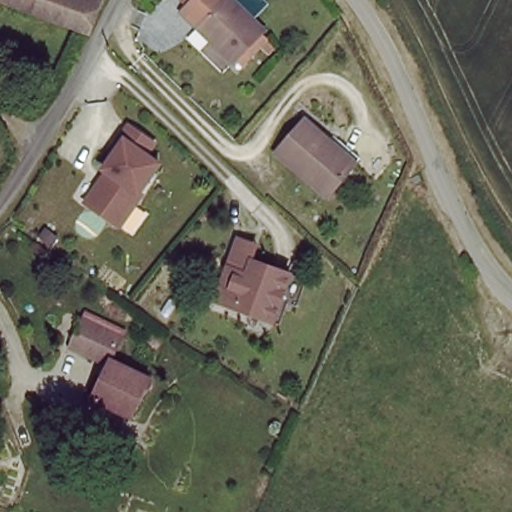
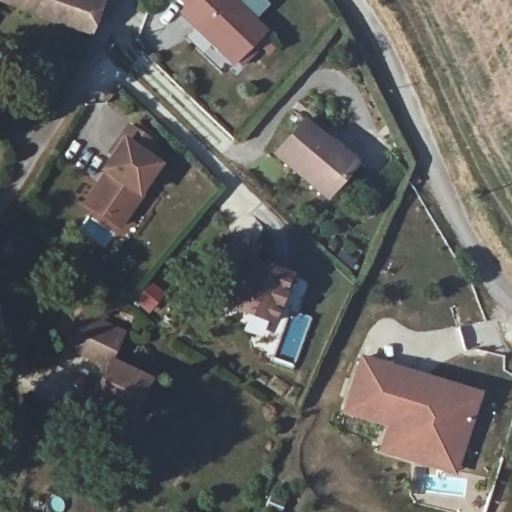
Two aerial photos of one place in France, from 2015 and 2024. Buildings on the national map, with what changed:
unchanged [(85,39),(0,9),(0,0),(103,0),(85,39)]
unchanged [(167,0),(221,0),(194,28),(167,0)]
unchanged [(221,0),(239,0),(273,35),(240,70),(194,28),(221,0)]
unchanged [(274,151),(299,120),(327,145),(334,137),(357,157),(350,165),(325,193),(274,151)]
unchanged [(150,138),(142,151),(156,159),(138,189),(141,191),(120,224),(86,203),(105,174),(101,171),(110,156),(106,154),(124,123),(150,138)]
unchanged [(212,294),(221,265),(231,236),(249,242),(245,256),(283,268),(269,316),(239,308),(211,299),(212,294)]
unchanged [(122,339),(114,362),(152,378),(136,418),(97,402),(111,368),(74,353),(84,323),(122,339)]
new [(380,362),(420,375),(493,393),(490,405),(481,434),(452,430),(440,467),(400,455),(408,429),(363,416),(367,404),(380,362)]
new [(452,430),(481,434),(471,477),(440,467),(452,430)]

